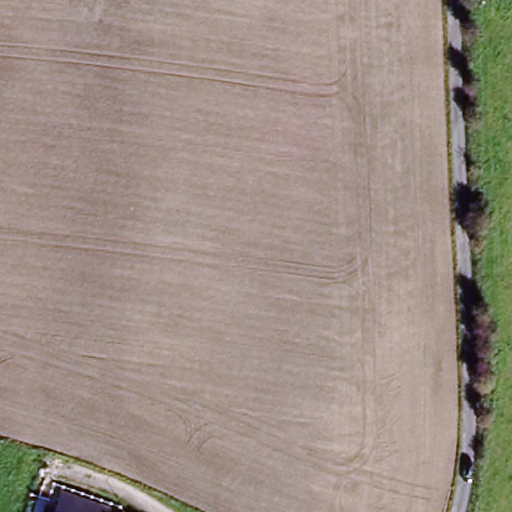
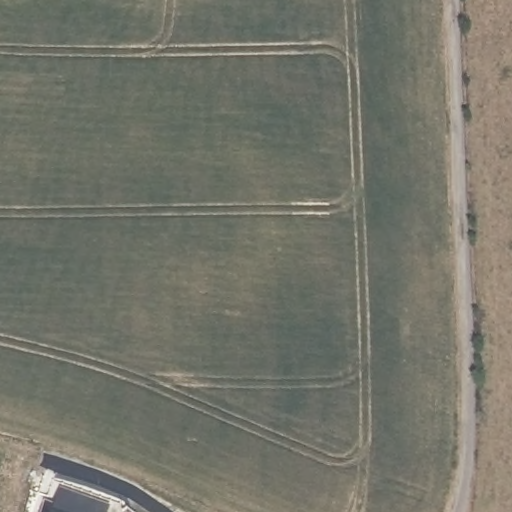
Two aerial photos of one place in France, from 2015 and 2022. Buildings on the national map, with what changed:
unchanged [(56,505),(61,489),(111,507),(110,512),(41,512),(44,502),(56,505)]

